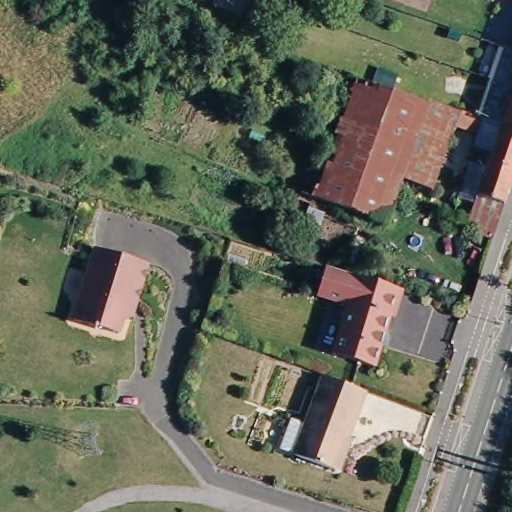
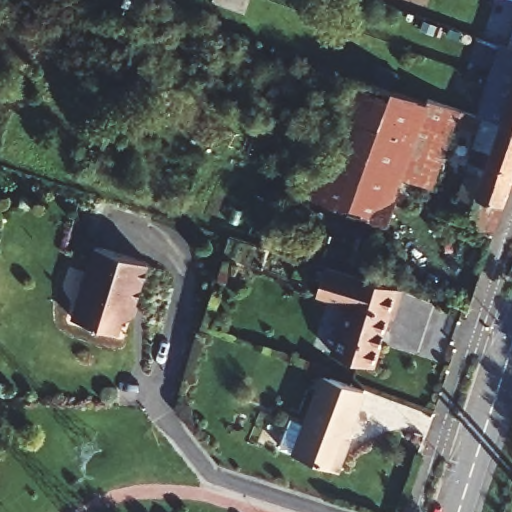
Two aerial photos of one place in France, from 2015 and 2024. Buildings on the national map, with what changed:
unchanged [(490,78),(489,78),(488,78),(501,44),(508,46),(512,32),(512,126),(477,113),(490,78)]
unchanged [(329,110),(337,88),(344,71),(377,83),(386,86),(427,101),(428,100),(430,96),(457,106),(452,121),(430,184),(400,174),(382,220),(300,191),(300,189),(329,110)]
unchanged [(512,126),(512,180),(495,232),(467,222),(473,204),(467,202),(470,194),(476,195),(486,164),(480,162),(477,170),(471,168),(474,160),(469,159),(478,130),(452,121),(457,106),(477,113),(512,126)]
unchanged [(119,319),(115,331),(95,324),(92,326),(91,324),(71,318),(93,245),(145,262),(132,303),(128,317),(119,319)]
unchanged [(394,325),(390,324),(384,342),(382,342),(378,352),(381,353),(374,375),(332,362),(347,312),(316,303),(325,274),(402,298),(394,325)]
unchanged [(368,396),(346,453),(349,459),(344,471),(338,474),(297,459),(298,458),(284,452),(294,424),(309,429),(327,380),(368,396)]

